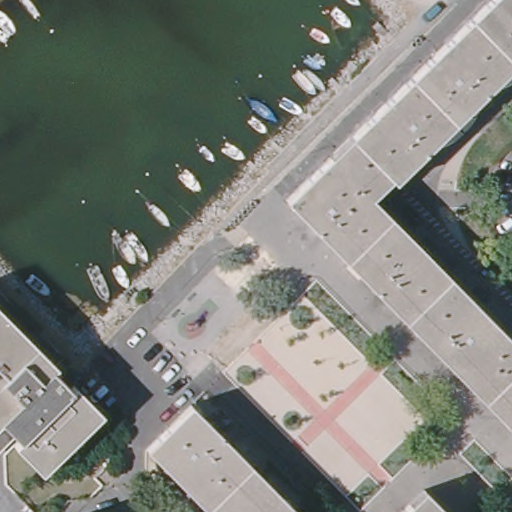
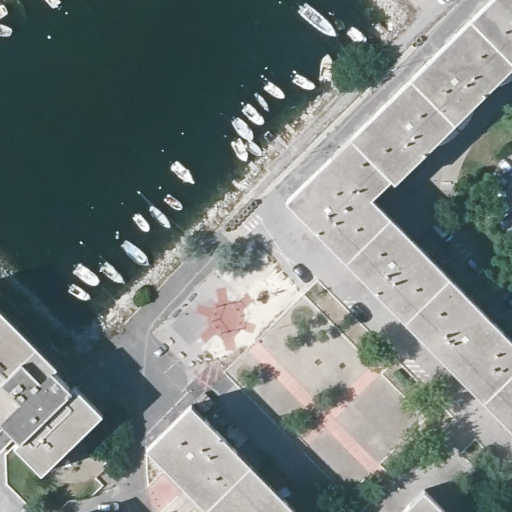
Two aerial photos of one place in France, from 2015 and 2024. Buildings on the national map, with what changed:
unchanged [(345,137),(484,0),(512,0),(512,62),(391,182),(387,179),(386,180),(368,197),(512,340),(512,429),(450,367),(321,240),(282,200),(327,156),(345,137)]
unchanged [(0,423),(0,313),(69,380),(71,377),(74,381),(99,407),(38,467),(13,442),(16,440),(11,435),(0,444),(0,428),(3,426),(0,423)]
unchanged [(270,489),(293,512),(203,512),(140,450),(185,406),(270,489)]
unchanged [(421,490),(443,512),(398,512),(421,490)]

